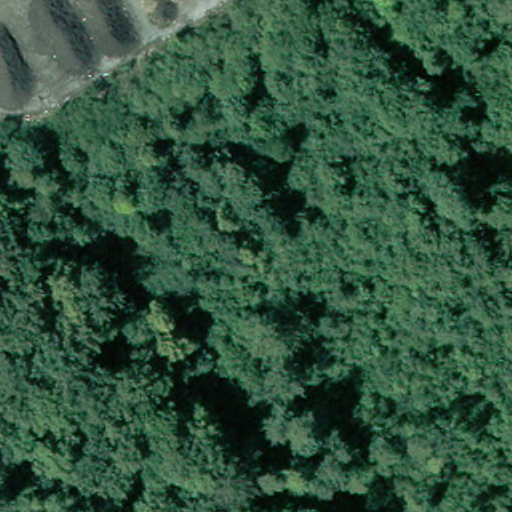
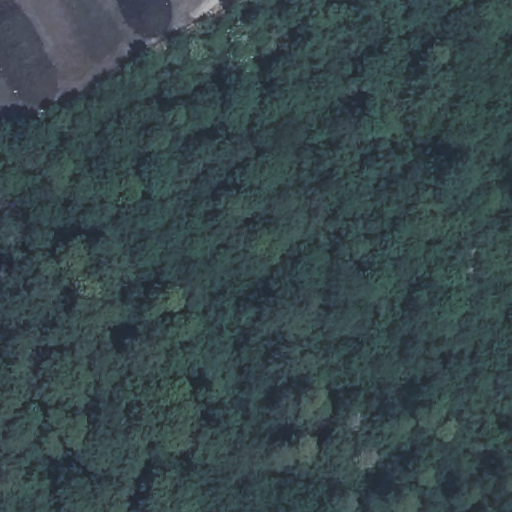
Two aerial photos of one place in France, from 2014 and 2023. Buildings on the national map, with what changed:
[]

